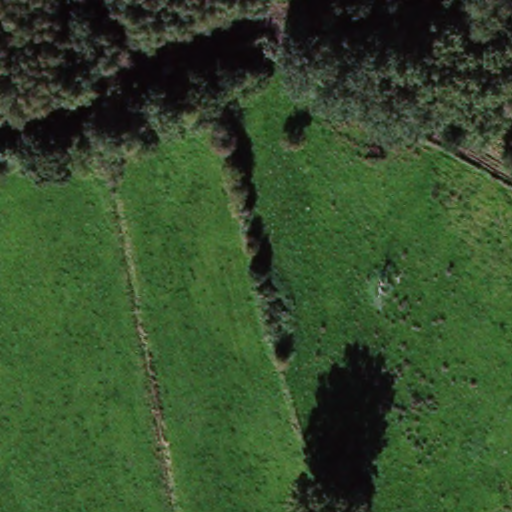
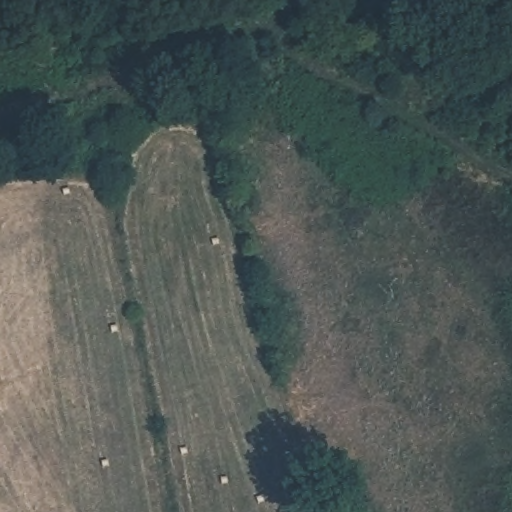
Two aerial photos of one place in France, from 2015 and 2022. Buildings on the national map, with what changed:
[]

